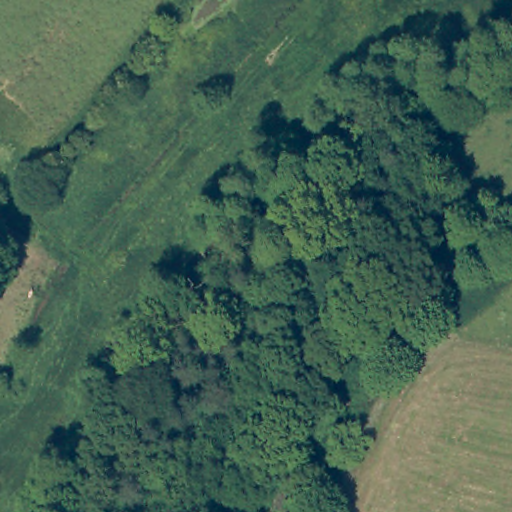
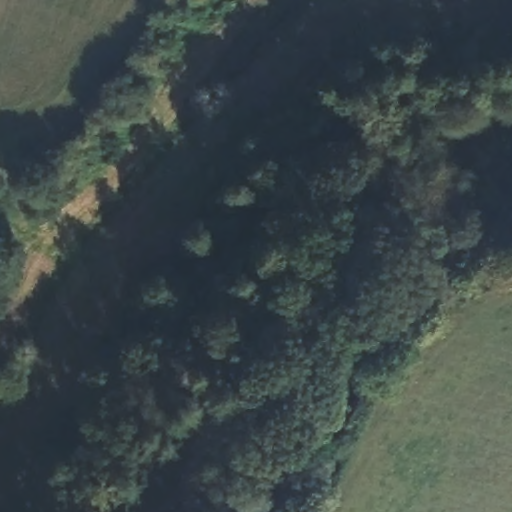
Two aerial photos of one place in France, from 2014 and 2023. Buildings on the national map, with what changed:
unchanged [(322,512),(288,512),(302,487),(328,500),(322,512)]

